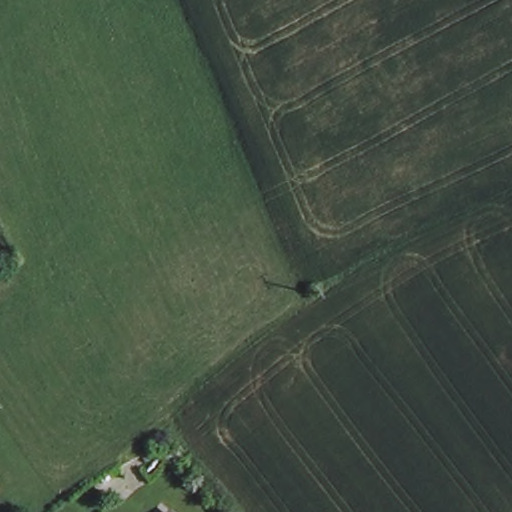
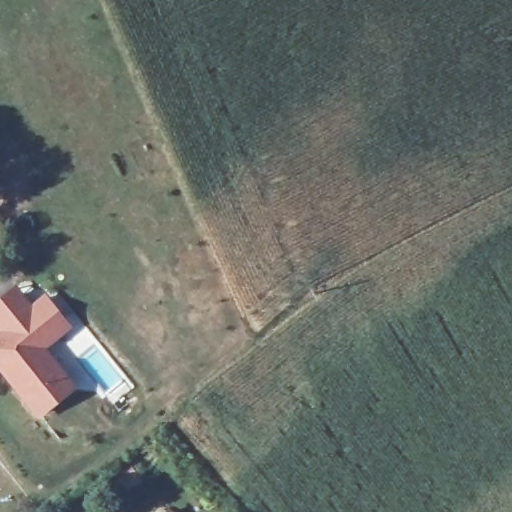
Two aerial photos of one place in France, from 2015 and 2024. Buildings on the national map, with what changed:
new [(16,286),(33,305),(46,294),(75,329),(50,349),(77,386),(36,418),(0,374),(0,300),(16,286)]
unchanged [(166,512),(164,512),(165,511),(166,512)]

